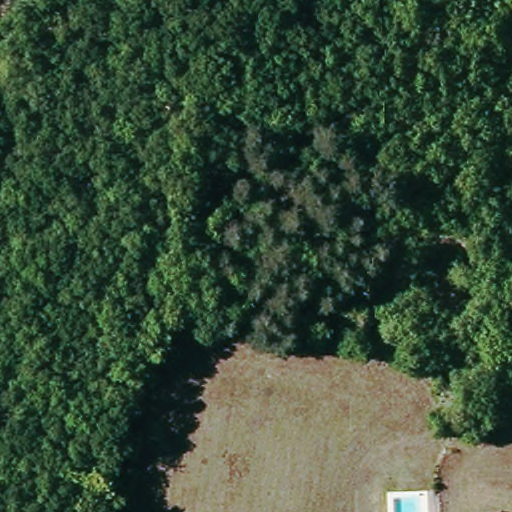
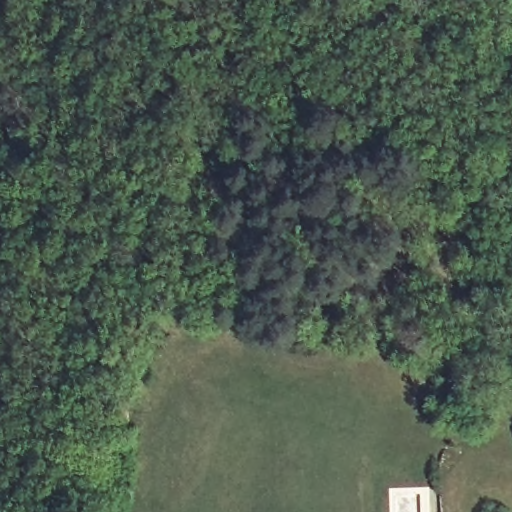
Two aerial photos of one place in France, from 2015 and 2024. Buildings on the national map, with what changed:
[]

